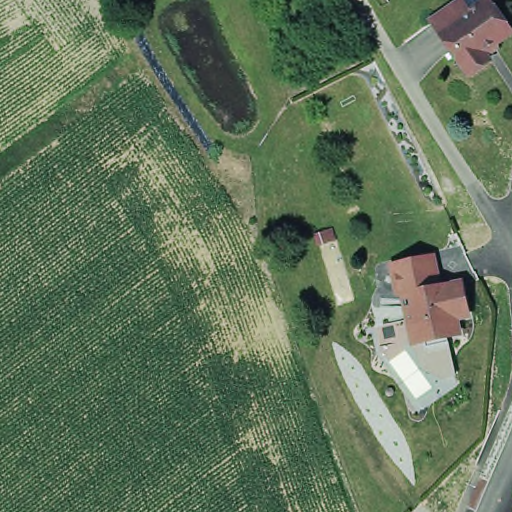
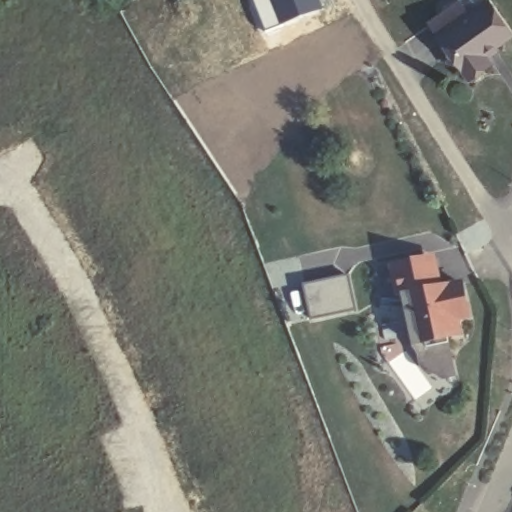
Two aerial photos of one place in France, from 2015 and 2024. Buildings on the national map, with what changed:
new [(324,9),(281,26),(264,32),(251,0),(321,0),(324,9)]
unchanged [(464,67),(438,31),(428,17),(453,0),(460,0),(467,10),(481,0),(488,0),(508,30),(480,50),(483,53),(486,57),(467,72),(464,67)]
unchanged [(390,263),(421,257),(427,286),(454,281),(461,313),(449,316),(452,332),(418,339),(406,342),(402,321),(390,263)]
new [(347,275),(357,311),(310,320),(303,283),(347,275)]

